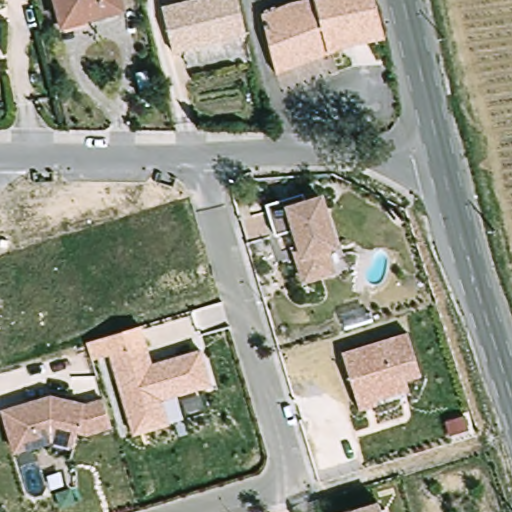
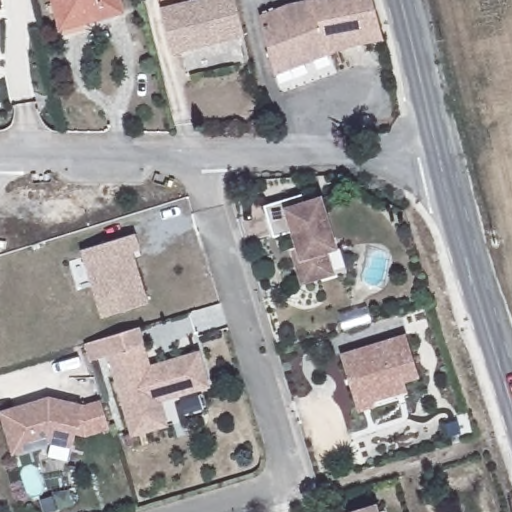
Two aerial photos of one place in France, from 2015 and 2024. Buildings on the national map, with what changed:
unchanged [(65,24),(59,0),(122,0),(124,9),(65,24)]
unchanged [(245,39),(168,52),(161,6),(191,0),(237,0),(241,22),(245,39)]
unchanged [(301,28),(309,62),(274,76),(257,12),(286,4),(297,0),(314,0),(321,24),(301,28)]
unchanged [(330,41),(333,56),(309,62),(301,28),(321,24),(314,0),(374,0),(381,32),(330,41)]
unchanged [(304,196),(306,206),(321,201),(336,249),(326,252),(333,273),(305,282),(298,259),(303,258),(296,232),(276,239),(266,207),(304,196)]
new [(101,318),(81,249),(136,233),(142,252),(134,254),(150,303),(101,318)]
unchanged [(106,358),(93,364),(85,343),(138,326),(143,345),(106,358)]
unchanged [(420,377),(406,382),(409,393),(360,410),(342,352),(407,333),(420,377)]
unchanged [(209,389),(163,402),(170,431),(130,442),(106,358),(143,345),(150,366),(198,352),(209,389)]
unchanged [(10,456),(0,426),(0,411),(50,397),(80,406),(73,447),(50,442),(10,456)]
unchanged [(87,435),(76,433),(80,406),(103,399),(111,430),(87,435)]
unchanged [(379,504),(381,512),(352,512),(379,504)]

